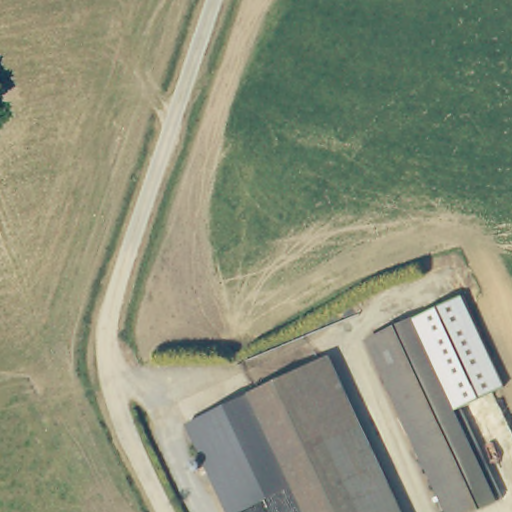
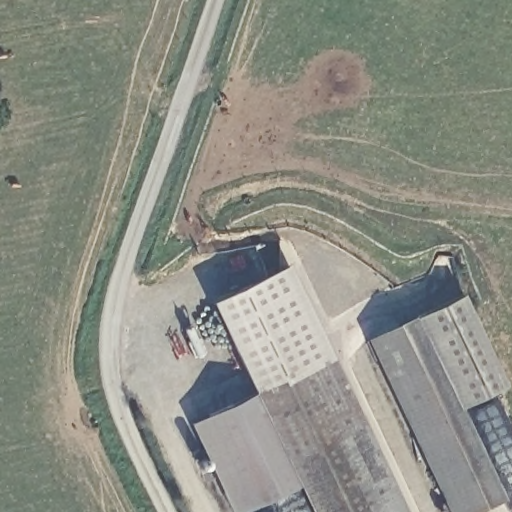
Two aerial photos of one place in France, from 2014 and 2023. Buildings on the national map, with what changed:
new [(289,265),(333,357),(330,358),(253,393),(212,302),(289,265)]
unchanged [(461,295),(505,386),(460,408),(416,315),(461,295)]
unchanged [(503,499),(476,512),(453,512),(370,337),(416,315),(480,451),(503,499)]
unchanged [(241,512),(198,419),(330,358),(402,512),(321,512),(307,483),(245,512),(241,512)]

